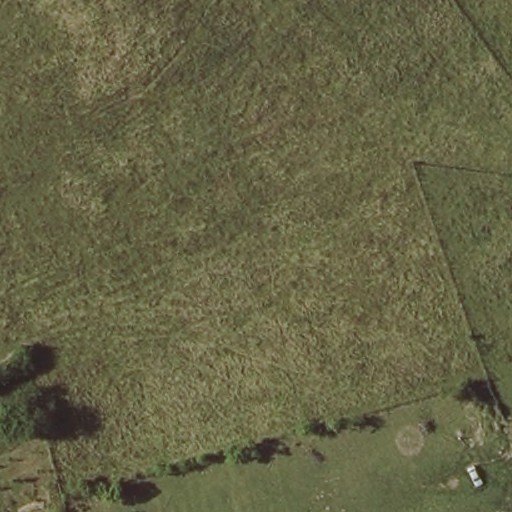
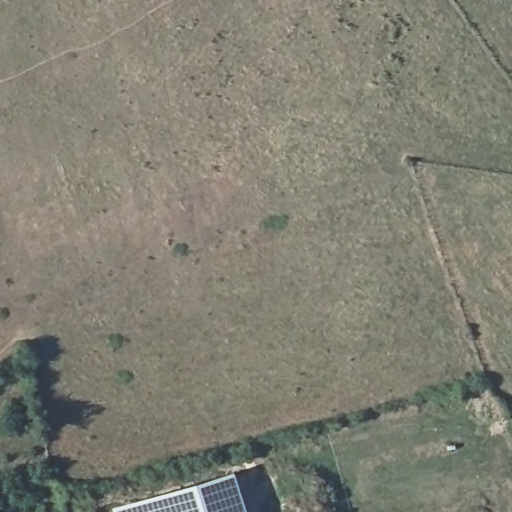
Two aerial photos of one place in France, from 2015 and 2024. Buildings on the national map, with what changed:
new [(243,512),(110,512),(109,507),(230,471),(243,512)]

